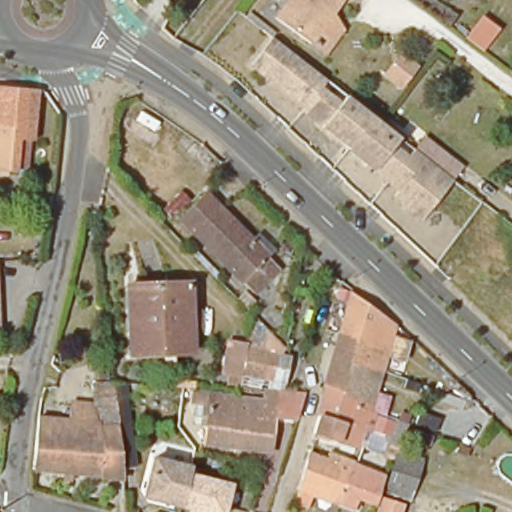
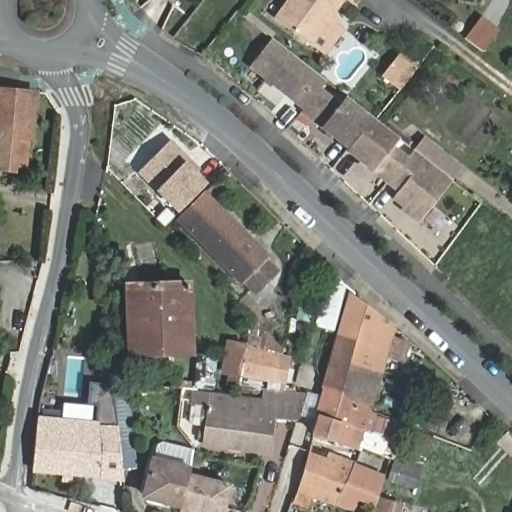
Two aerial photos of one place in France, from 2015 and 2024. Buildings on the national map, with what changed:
unchanged [(486,55),(464,40),(483,14),(503,30),(486,55)]
unchanged [(446,180),(450,184),(417,224),(413,220),(405,214),(407,210),(392,198),(398,189),(389,182),(387,184),(348,153),(346,151),(347,149),(302,114),(306,108),(296,100),(293,103),(252,69),(272,43),(302,65),(372,121),(376,124),(408,149),(417,138),(433,151),(456,169),(446,180)]
unchanged [(402,93),(382,77),(402,50),(422,65),(402,93)]
unchanged [(32,138),(17,138),(16,170),(0,169),(0,90),(36,94),(32,138)]
new [(180,209),(141,169),(172,140),(201,169),(198,172),(209,182),(180,209)]
unchanged [(181,220),(192,209),(206,194),(266,255),(265,257),(277,269),(253,293),(181,220)]
unchanged [(192,353),(131,356),(127,286),(190,284),(192,353)]
unchanged [(343,309),(386,340),(387,341),(386,341),(382,353),(397,357),(393,376),(377,371),(372,388),(348,381),(356,358),(331,351),(343,309)]
unchanged [(239,377),(221,374),(227,342),(244,344),(239,377)]
unchanged [(273,354),(269,381),(242,376),(246,354),(246,349),(273,354)]
unchanged [(361,425),(343,419),(345,414),(316,404),(331,351),(356,358),(348,381),(372,388),(361,425)]
unchanged [(35,424),(92,429),(87,391),(109,389),(117,389),(127,471),(117,472),(118,483),(30,475),(35,424)]
unchanged [(272,452),(204,443),(206,426),(193,424),(196,402),(192,402),(194,392),(263,401),(265,389),(305,393),(298,419),(276,417),(272,452)]
unchanged [(308,432),(316,404),(345,414),(343,419),(361,425),(354,446),(308,432)]
unchanged [(298,486),(310,447),(353,462),(354,459),(384,472),(376,501),(360,494),(355,503),(337,496),(338,491),(315,483),(312,491),(298,486)]
unchanged [(387,488),(400,449),(422,456),(410,494),(387,488)]
unchanged [(190,468),(188,474),(230,484),(223,512),(205,512),(181,507),(147,499),(144,493),(152,459),(190,468)]

